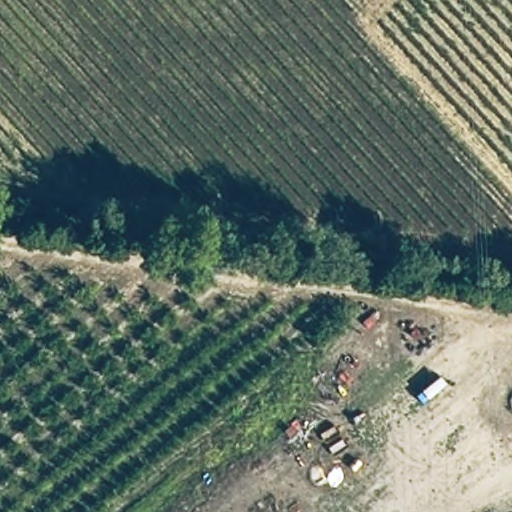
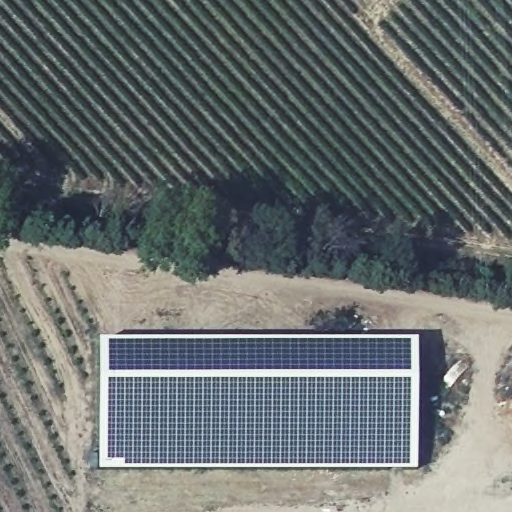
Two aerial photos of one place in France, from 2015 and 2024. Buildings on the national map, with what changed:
new [(98,340),(417,340),(417,470),(98,470),(98,340)]

